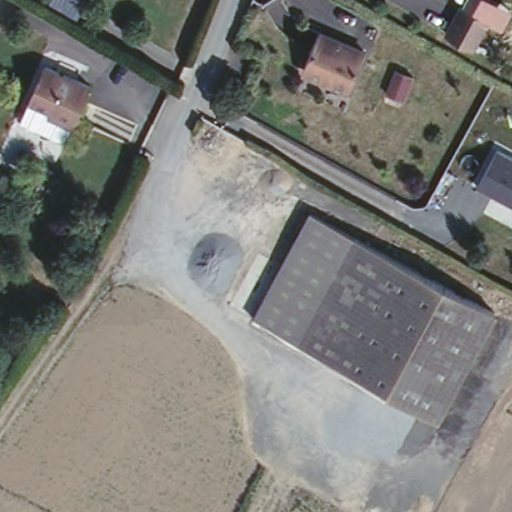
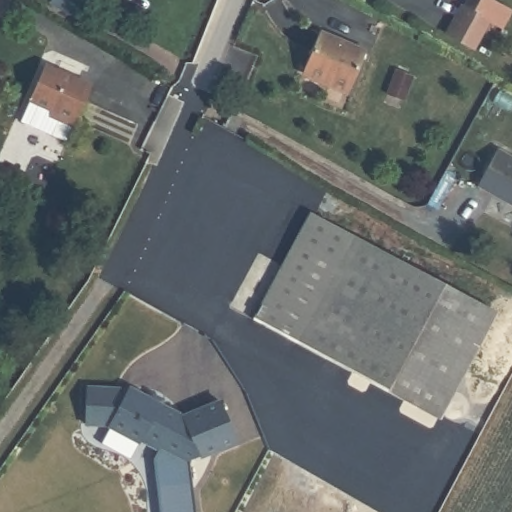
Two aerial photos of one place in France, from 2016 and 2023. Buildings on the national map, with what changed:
new [(464,0),(493,0),(512,11),(512,15),(504,30),(490,23),(474,50),(445,35),(464,0)]
unchanged [(352,98),(331,86),(331,80),(307,69),(325,33),(369,56),(352,98)]
unchanged [(90,83),(73,127),(46,116),(49,111),(28,101),(45,65),(90,83)]
unchanged [(512,160),(512,205),(477,186),(496,152),(512,160)]
unchanged [(305,217),(493,307),(442,416),(253,326),(305,217)]
new [(128,386),(182,415),(220,400),(235,438),(189,457),(195,512),(161,512),(153,456),(156,448),(140,439),(131,457),(102,442),(111,424),(108,422),(85,420),(86,385),(127,387),(128,386)]

